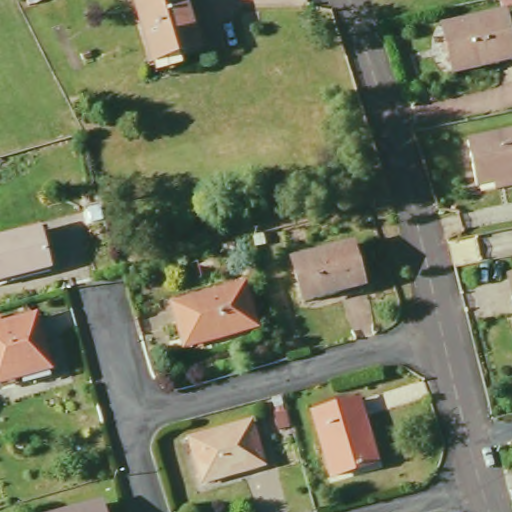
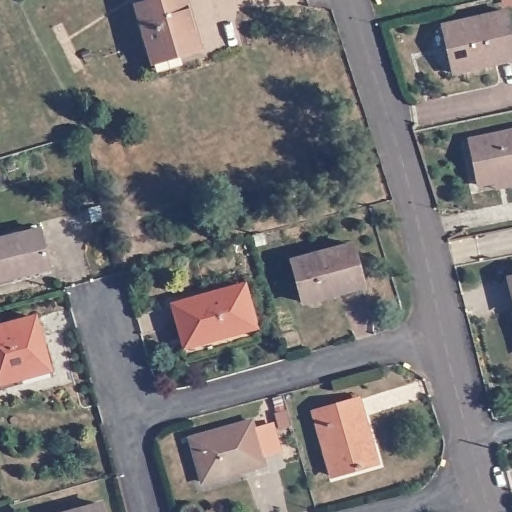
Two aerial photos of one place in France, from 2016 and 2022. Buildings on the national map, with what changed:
unchanged [(151,69),(134,5),(154,0),(182,0),(195,45),(174,51),(176,62),(151,69)]
unchanged [(500,0),(512,0),(512,6),(503,7),(500,0)]
unchanged [(451,72),(442,25),(504,13),(512,52),(512,59),(451,72)]
unchanged [(475,181),(467,136),(512,127),(512,183),(494,186),(492,179),(475,181)]
unchanged [(0,280),(0,240),(39,232),(47,271),(0,280)]
unchanged [(362,285),(304,300),(293,258),(352,244),(362,285)]
unchanged [(512,281),(512,287),(511,281),(512,281)]
unchanged [(256,328),(186,348),(174,306),(244,286),(256,328)]
unchanged [(44,370),(0,381),(0,327),(30,318),(44,370)]
unchanged [(329,477),(312,412),(356,401),(374,466),(329,477)]
unchanged [(201,482),(190,438),(250,423),(262,466),(201,482)]
unchanged [(104,512),(66,512),(102,502),(104,512)]

